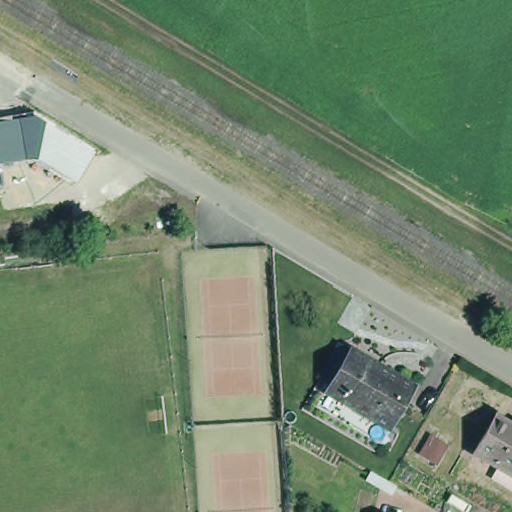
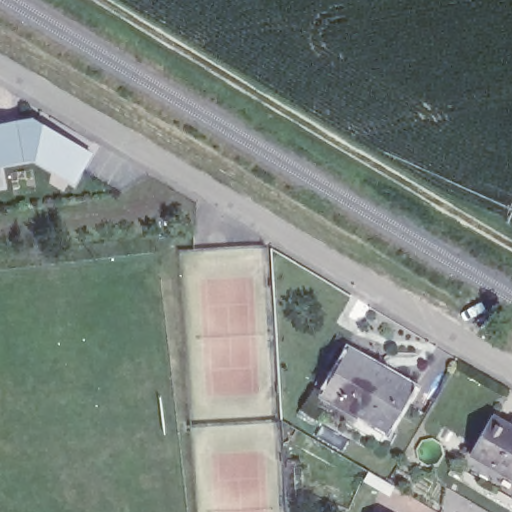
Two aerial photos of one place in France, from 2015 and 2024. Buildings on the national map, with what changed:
unchanged [(10,116),(34,112),(61,130),(94,149),(93,153),(95,154),(76,184),(71,181),(70,185),(47,170),(33,163),(0,170),(0,119),(10,116)]
unchanged [(3,185),(0,186),(0,174),(3,185)]
unchanged [(317,402),(326,387),(329,381),(350,344),(414,380),(389,424),(354,404),(345,419),(317,402)]
unchanged [(512,416),(512,467),(474,442),(498,406),(512,416)]
unchanged [(369,509),(379,512),(369,512),(369,509)]

